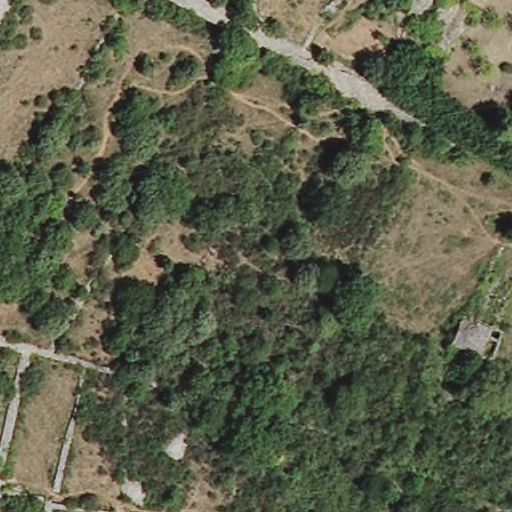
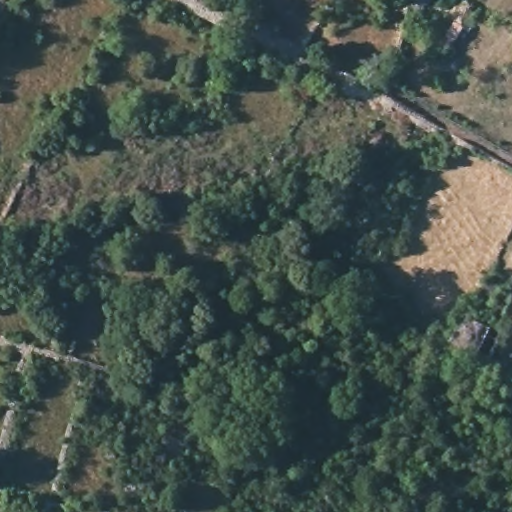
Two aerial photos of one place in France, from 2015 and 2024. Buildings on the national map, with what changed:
unchanged [(456,314),(474,324),(466,348),(462,352),(442,345),(438,344),(451,311),(456,314)]
unchanged [(470,349),(483,320),(492,326),(480,352),(470,349)]

